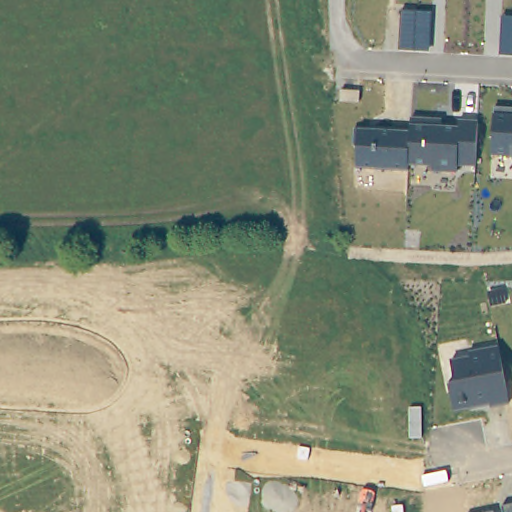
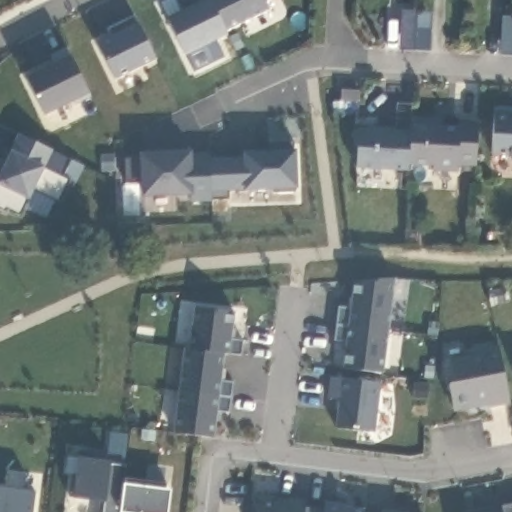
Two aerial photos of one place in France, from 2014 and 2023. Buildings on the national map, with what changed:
new [(227,30),(229,34),(184,53),(167,17),(182,10),(177,0),(266,0),(271,10),(227,30)]
unchanged [(431,12),(429,51),(400,50),(400,10),(431,12)]
new [(113,81),(96,43),(111,36),(107,28),(135,15),(156,60),(113,81)]
unchanged [(512,18),(512,56),(499,55),(501,17),(512,18)]
new [(45,115),(26,77),(71,54),(91,93),(45,115)]
unchanged [(493,107),(512,107),(512,160),(508,156),(491,154),(492,115),(493,107)]
unchanged [(409,130),(410,124),(410,117),(441,118),(441,125),(457,127),(458,119),(477,120),(477,166),(457,165),(456,173),(431,172),(431,167),(407,166),(407,170),(355,168),(356,129),(409,130)]
new [(68,180),(59,201),(34,189),(20,214),(7,208),(6,211),(0,209),(0,172),(17,134),(84,165),(77,184),(68,180)]
new [(297,190),(232,191),(231,200),(191,201),(192,195),(141,195),(141,181),(129,181),(128,158),(142,157),(141,151),(192,149),(193,153),(211,153),(212,158),(243,156),(244,149),(297,148),(297,190)]
new [(382,373),(343,368),(347,341),(333,340),(339,306),(351,309),(355,279),(395,278),(382,373)]
new [(197,306),(236,312),(232,339),(242,341),(241,354),(191,349),(197,306)]
unchanged [(468,356),(468,350),(496,345),(508,404),(488,407),(488,404),(452,409),(447,384),(453,377),(450,359),(468,356)]
new [(185,348),(191,349),(225,353),(222,380),(233,381),(231,398),(179,389),(185,348)]
new [(338,399),(330,398),(332,377),(381,383),(376,432),(336,427),(338,399)]
new [(231,398),(229,411),(217,410),(214,438),(174,433),(179,389),(231,398)]
new [(82,457),(81,452),(107,455),(107,461),(110,461),(110,463),(122,465),(120,478),(166,483),(166,488),(170,489),(167,512),(105,512),(107,502),(72,497),(77,457),(82,457)]
unchanged [(33,512),(0,512),(0,488),(36,492),(33,512)]
new [(278,497),(288,499),(288,496),(306,498),(305,506),(323,509),(325,501),(344,503),(344,505),(365,508),(365,512),(257,512),(258,499),(277,502),(278,497)]
unchanged [(502,512),(501,506),(512,504),(512,512),(502,512)]
new [(398,510),(397,511),(403,512),(380,512),(381,508),(398,510)]
unchanged [(493,512),(487,512),(492,511),(493,512)]

